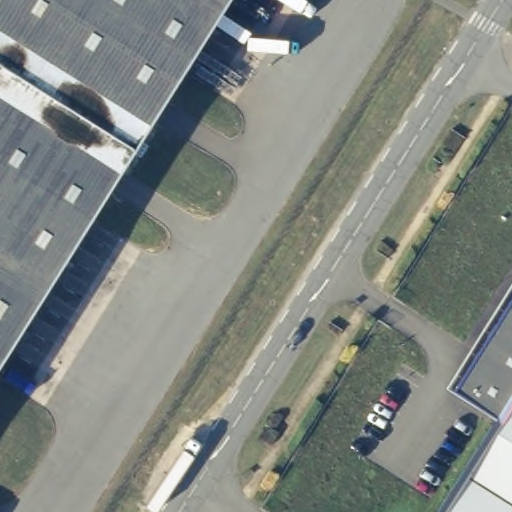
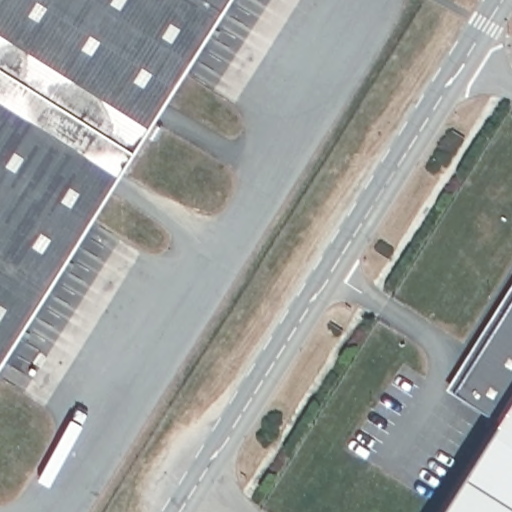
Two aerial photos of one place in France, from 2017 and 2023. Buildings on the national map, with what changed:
unchanged [(0,351),(0,0),(221,0),(0,351)]
unchanged [(459,384),(512,299),(512,512),(438,512),(502,412),(459,384)]

